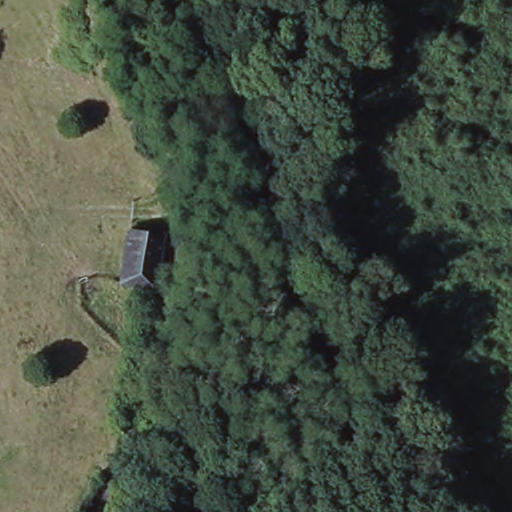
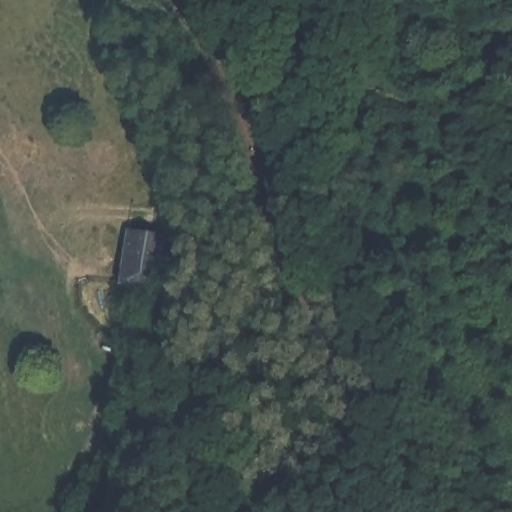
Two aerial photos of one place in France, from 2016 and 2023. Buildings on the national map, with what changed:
unchanged [(115,290),(122,233),(156,237),(151,292),(115,290)]

